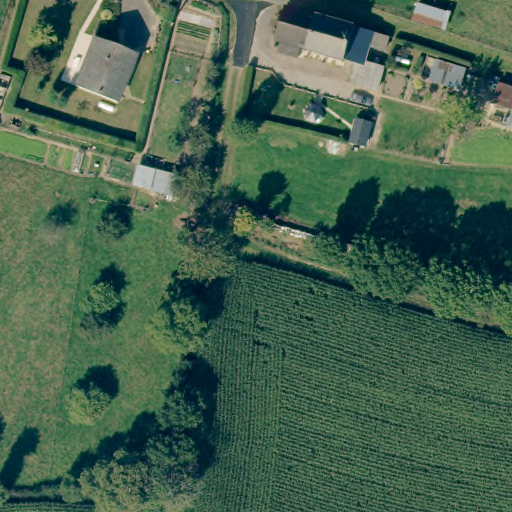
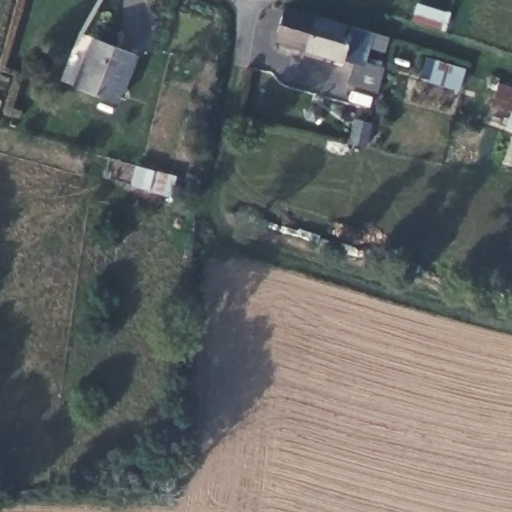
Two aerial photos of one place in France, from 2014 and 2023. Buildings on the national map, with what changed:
unchanged [(277,55),(279,44),(272,42),(280,7),(352,27),(343,62),(299,49),(295,60),(277,55)]
unchanged [(392,37),(387,51),(372,47),(375,32),(392,37)]
unchanged [(113,105),(71,90),(92,40),(132,54),(113,105)]
unchanged [(351,62),(381,70),(375,93),(345,86),(351,62)]

